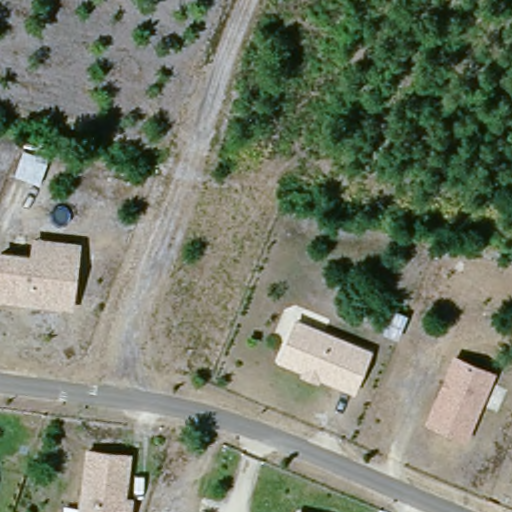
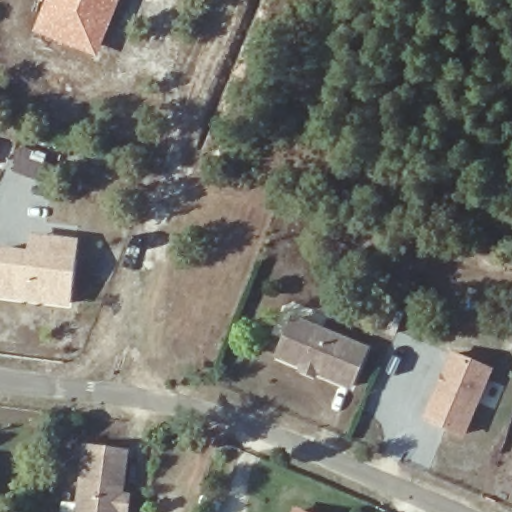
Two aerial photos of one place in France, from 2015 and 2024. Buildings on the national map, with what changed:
new [(53,4),(63,7),(65,0),(115,0),(103,30),(94,28),(87,47),(45,29),(53,4)]
unchanged [(34,234),(75,239),(74,257),(68,301),(0,293),(0,248),(31,252),(34,234)]
unchanged [(398,305),(405,285),(420,291),(412,310),(398,305)]
unchanged [(301,371),(303,367),(278,357),(294,320),(367,348),(352,387),(317,372),(315,376),(301,371)]
unchanged [(464,434),(427,419),(452,355),(489,370),(464,434)]
unchanged [(76,512),(84,451),(125,456),(119,500),(126,502),(125,512),(76,512)]

